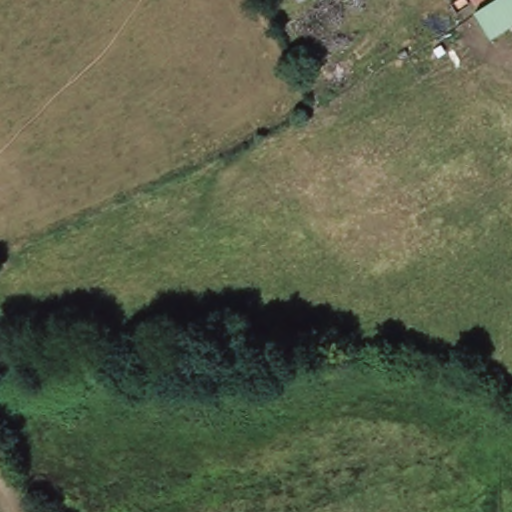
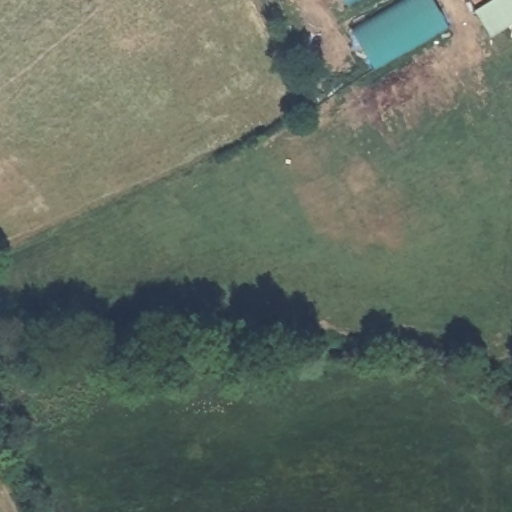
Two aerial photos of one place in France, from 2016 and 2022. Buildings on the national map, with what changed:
new [(375,69),(355,30),(408,0),(433,0),(449,28),(375,69)]
new [(491,36),(475,9),(489,0),(512,0),(512,24),(491,36)]

